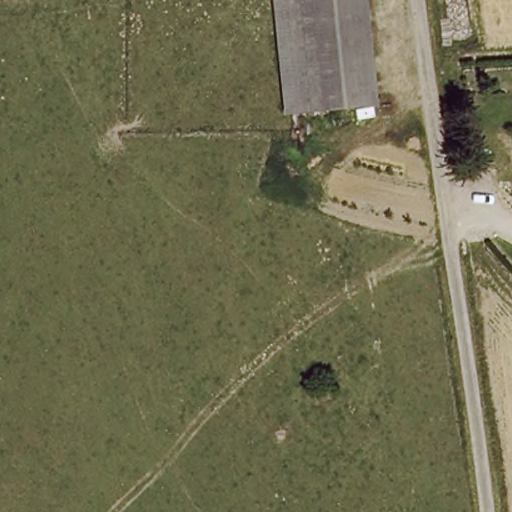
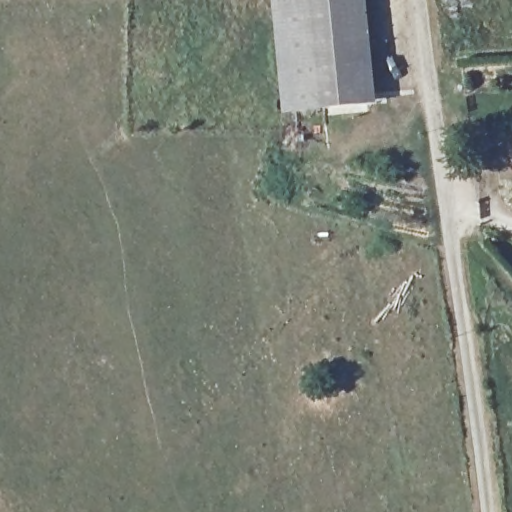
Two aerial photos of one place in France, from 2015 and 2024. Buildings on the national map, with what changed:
unchanged [(292,112),(276,0),(315,0),(330,107),(292,112)]
unchanged [(315,0),(367,0),(382,100),(330,107),(315,0)]

